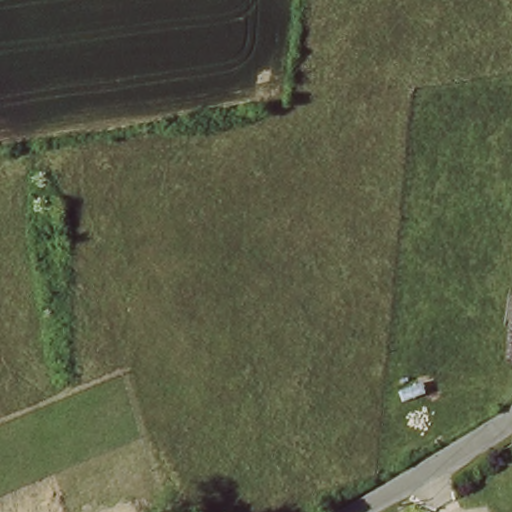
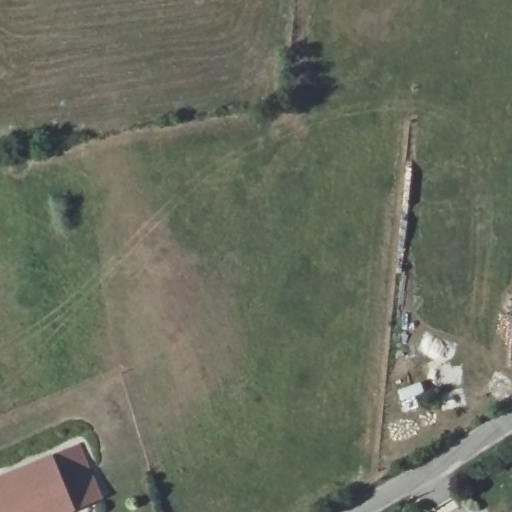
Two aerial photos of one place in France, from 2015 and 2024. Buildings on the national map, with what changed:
new [(80,444),(104,499),(76,511),(74,512),(0,512),(0,477),(53,456),(80,444)]

